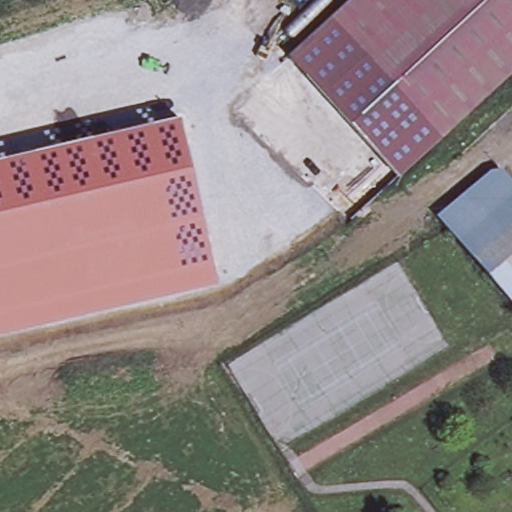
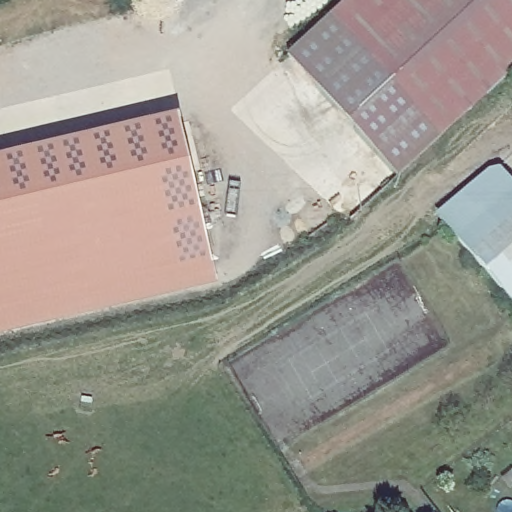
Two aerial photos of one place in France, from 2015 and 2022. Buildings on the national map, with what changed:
unchanged [(359,0),(457,119),(439,135),(330,15),(346,0),(359,0)]
unchanged [(457,119),(359,0),(440,0),(500,77),(457,119)]
unchanged [(511,68),(500,77),(440,0),(512,0),(512,69),(511,68)]
unchanged [(395,173),(288,54),(330,15),(439,135),(395,173)]
unchanged [(217,283),(0,334),(0,159),(179,118),(217,283)]
unchanged [(502,290),(452,231),(442,219),(502,170),(512,183),(512,302),(502,290)]

